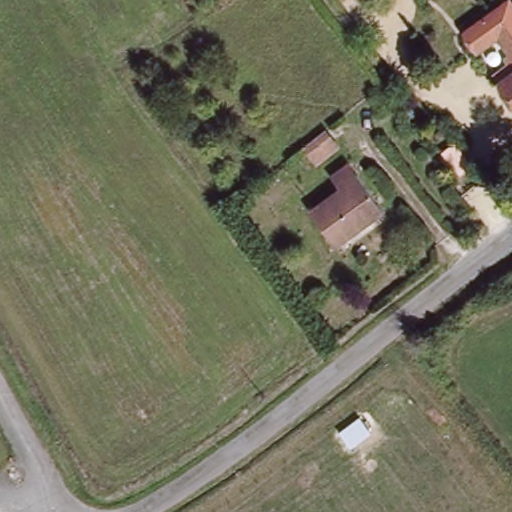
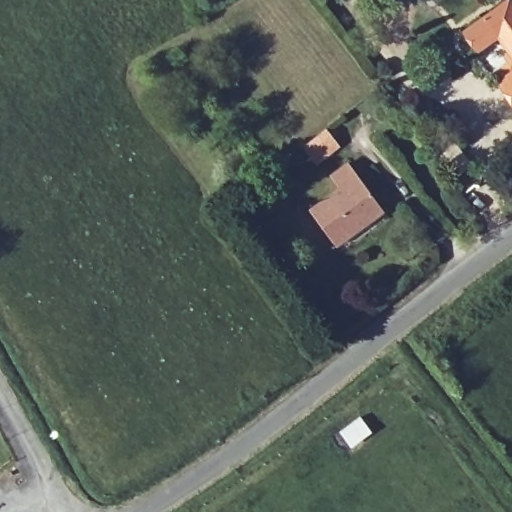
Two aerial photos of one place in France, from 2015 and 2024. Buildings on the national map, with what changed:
unchanged [(498,37),(481,51),(468,33),(510,1),(512,4),(512,54),(498,37)]
unchanged [(503,82),(512,76),(512,94),(503,82)]
unchanged [(326,136),(337,152),(327,160),(315,169),(303,152),(315,144),(326,136)]
unchanged [(329,181),(342,173),(352,168),(386,214),(377,220),(363,230),(339,247),(313,211),(337,194),(329,181)]

